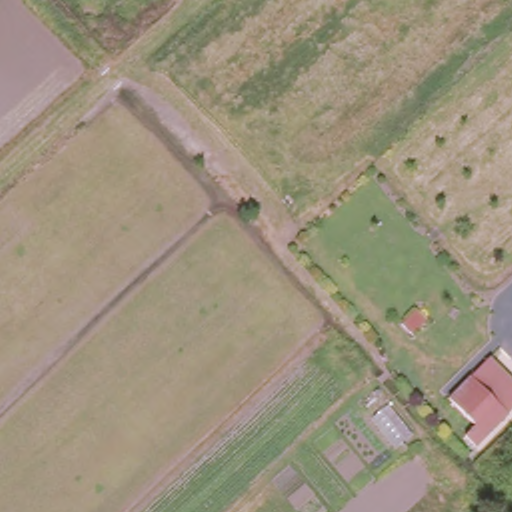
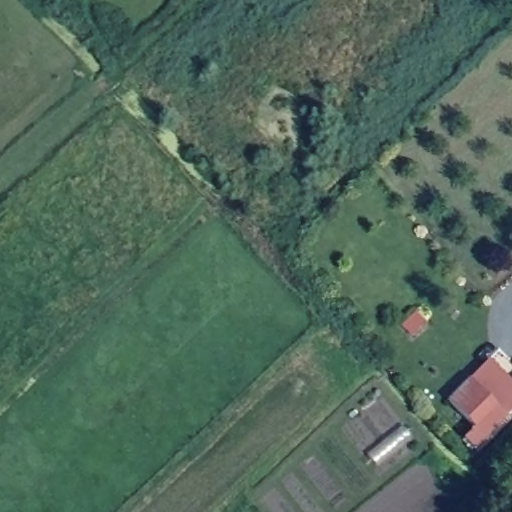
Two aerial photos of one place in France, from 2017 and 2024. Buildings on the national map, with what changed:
unchanged [(414,338),(399,322),(418,302),(432,318),(414,338)]
unchanged [(512,380),(512,413),(508,417),(479,455),(464,440),(473,426),(449,400),(471,376),(489,360),(512,380)]

